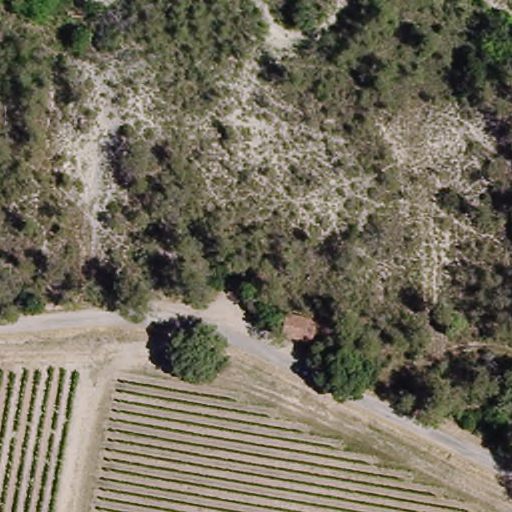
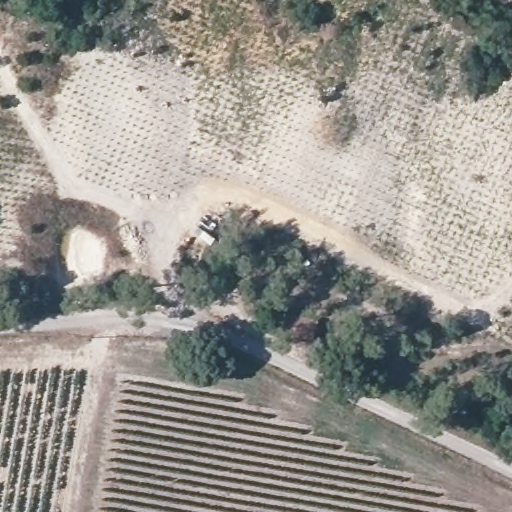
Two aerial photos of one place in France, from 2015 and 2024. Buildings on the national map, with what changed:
unchanged [(313,339),(283,334),(287,314),(318,320),(313,339)]

